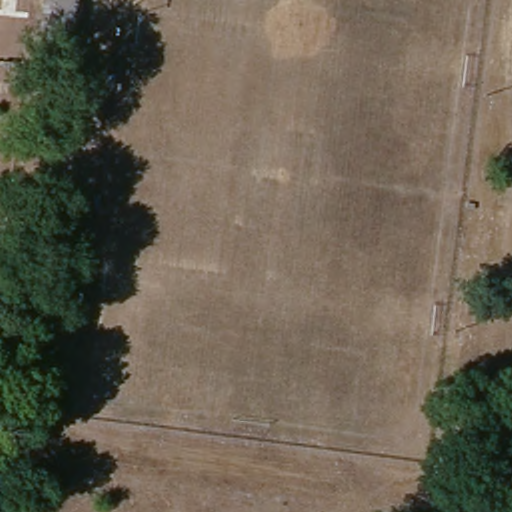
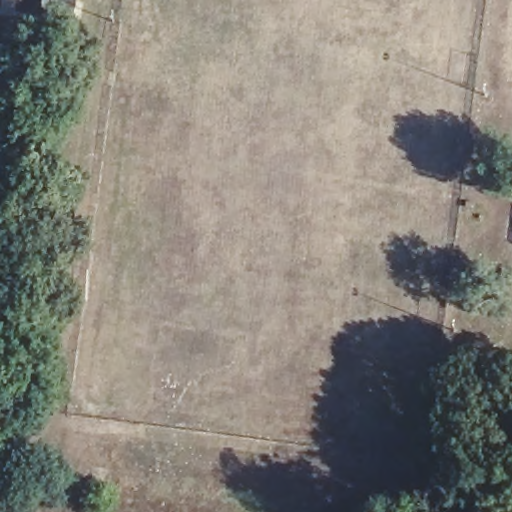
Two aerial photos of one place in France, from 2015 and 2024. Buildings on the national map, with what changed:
unchanged [(29,56),(36,0),(67,0),(60,60),(29,56)]
unchanged [(97,109),(86,205),(57,201),(70,106),(97,109)]

